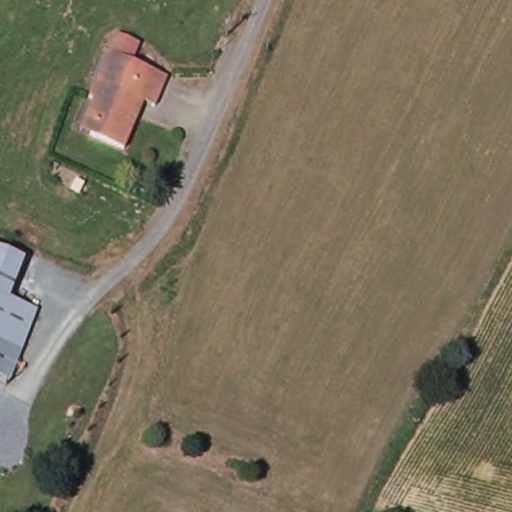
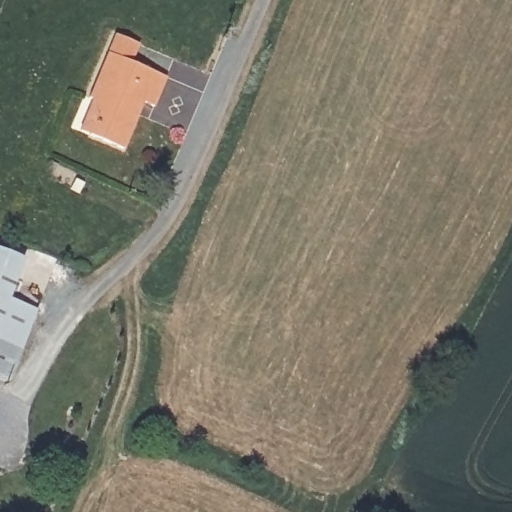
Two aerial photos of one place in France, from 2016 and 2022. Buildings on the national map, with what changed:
unchanged [(88,117),(95,99),(89,98),(109,53),(117,34),(140,44),(132,63),(171,79),(159,110),(147,106),(128,153),(95,140),(81,134),(88,117)]
unchanged [(8,298),(37,309),(8,384),(0,381),(0,248),(21,257),(8,298)]

